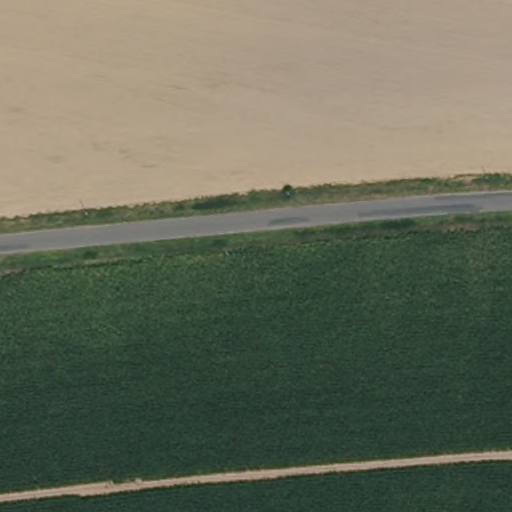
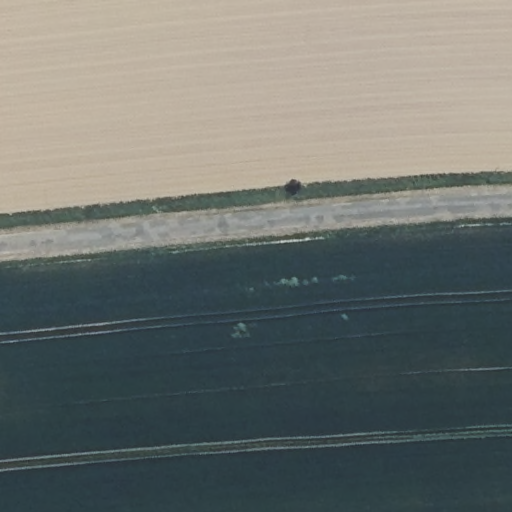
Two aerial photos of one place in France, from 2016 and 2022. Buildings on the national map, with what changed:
[]

